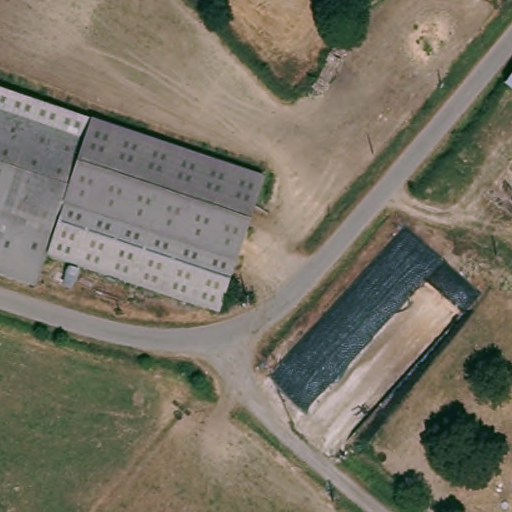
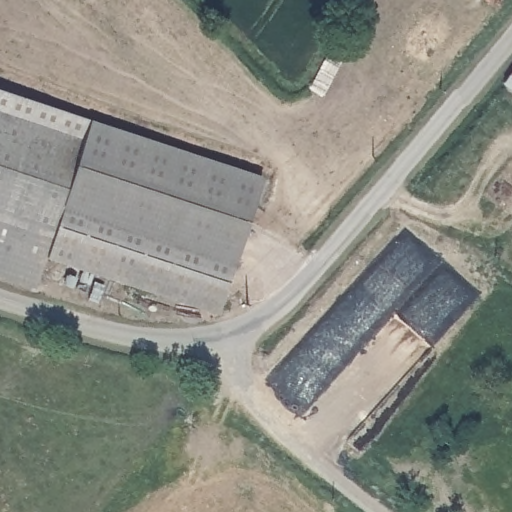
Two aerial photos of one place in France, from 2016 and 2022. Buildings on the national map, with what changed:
unchanged [(508,74),(512,70),(512,79),(507,75),(508,74)]
unchanged [(263,192),(225,282),(59,214),(30,285),(0,273),(0,84),(263,192)]

